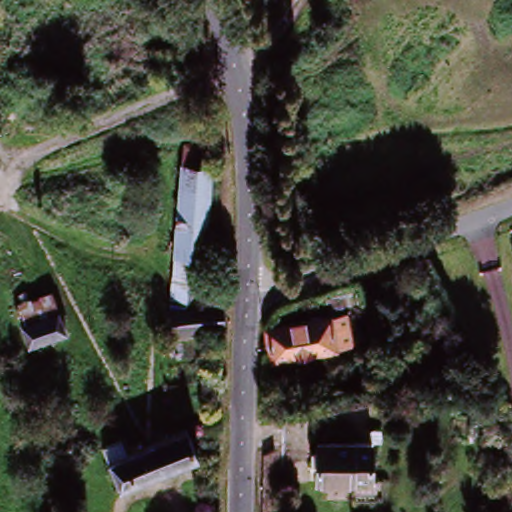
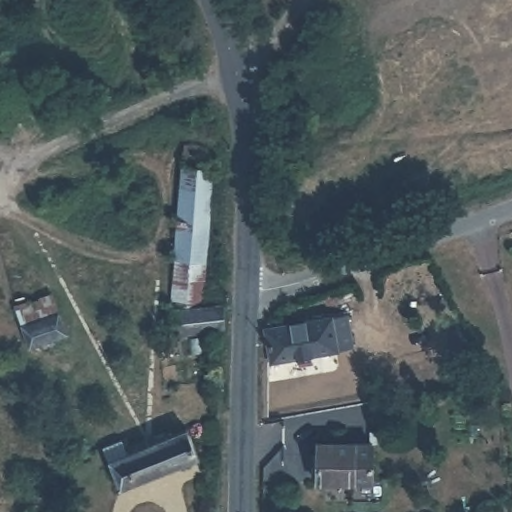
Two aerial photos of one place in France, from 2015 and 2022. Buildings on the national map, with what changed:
unchanged [(174,312),(176,270),(185,145),(214,149),(210,199),(204,310),(174,312)]
unchanged [(30,348),(16,305),(53,294),(66,337),(30,348)]
unchanged [(225,307),(225,332),(176,337),(174,312),(204,310),(225,307)]
unchanged [(273,361),(267,329),(347,315),(352,347),(273,361)]
unchanged [(411,361),(406,349),(436,339),(441,352),(411,361)]
unchanged [(412,365),(446,354),(450,366),(415,377),(412,365)]
unchanged [(390,399),(391,383),(404,384),(403,399),(390,399)]
unchanged [(130,454),(186,430),(198,457),(123,489),(106,450),(125,442),(130,454)]
unchanged [(318,481),(320,444),(371,446),(371,483),(318,481)]

